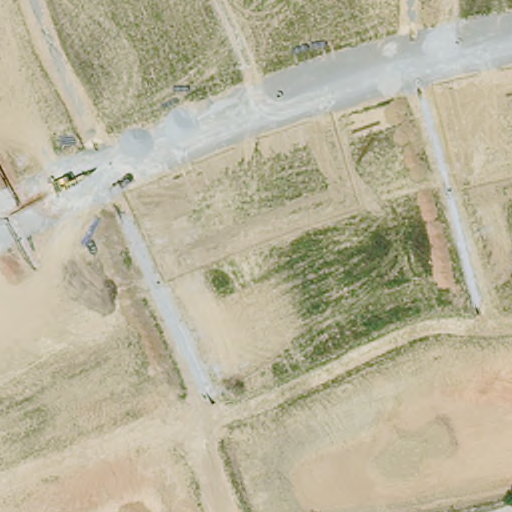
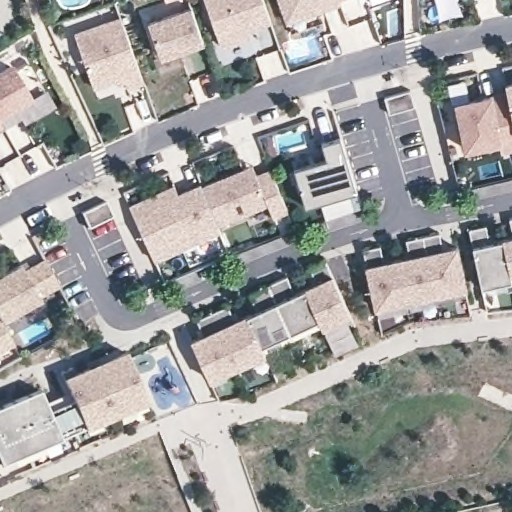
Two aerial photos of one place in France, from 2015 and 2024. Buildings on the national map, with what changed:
new [(205,0),(263,0),(271,23),(249,30),(247,39),(223,47),(205,0)]
new [(338,6),(287,23),(279,0),(336,0),(338,6)]
new [(160,57),(147,22),(190,7),(203,44),(160,57)]
new [(128,89),(127,82),(112,81),(94,89),(75,32),(120,17),(144,84),(128,89)]
new [(11,66),(30,100),(0,117),(0,72),(11,66)]
new [(500,149),(461,156),(453,104),(503,94),(503,85),(512,83),(512,120),(497,123),(500,149)]
new [(0,130),(0,122),(3,128),(0,130)]
unchanged [(354,195),(302,209),(293,170),(324,161),(321,144),(338,140),(354,195)]
unchanged [(282,200),(214,225),(217,232),(150,262),(129,207),(172,187),(177,196),(248,170),(251,178),(268,172),(282,200)]
new [(510,288),(480,295),(473,247),(512,239),(512,275),(508,276),(510,288)]
new [(466,293),(373,312),(362,268),(458,247),(466,293)]
new [(18,264),(22,270),(43,258),(57,286),(35,297),(38,302),(0,321),(0,274),(18,264)]
new [(348,316),(208,384),(190,342),(328,277),(348,316)]
new [(12,346),(0,353),(0,321),(12,346)]
new [(147,406),(57,440),(0,463),(0,408),(34,392),(42,414),(70,401),(61,380),(121,353),(147,406)]

